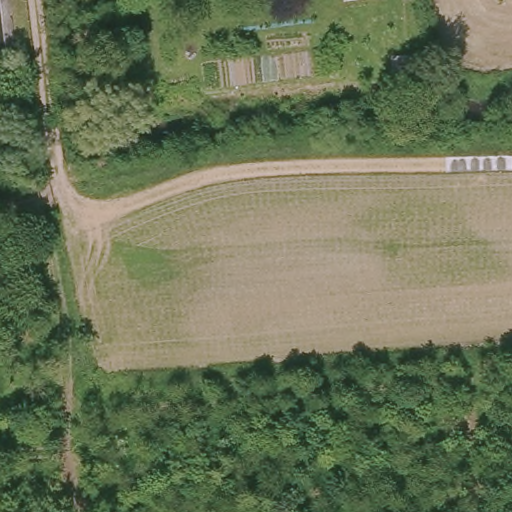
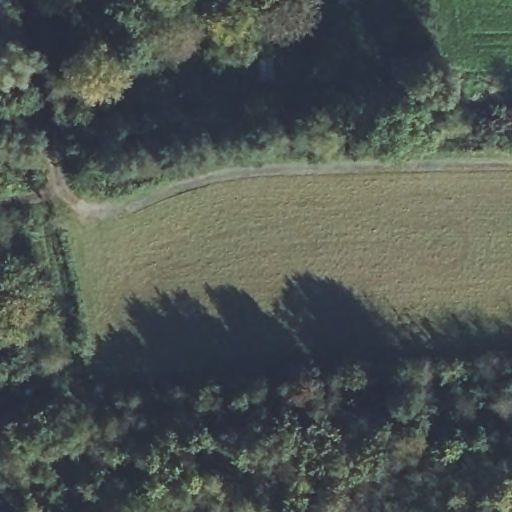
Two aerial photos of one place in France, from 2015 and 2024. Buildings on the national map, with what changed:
[]

